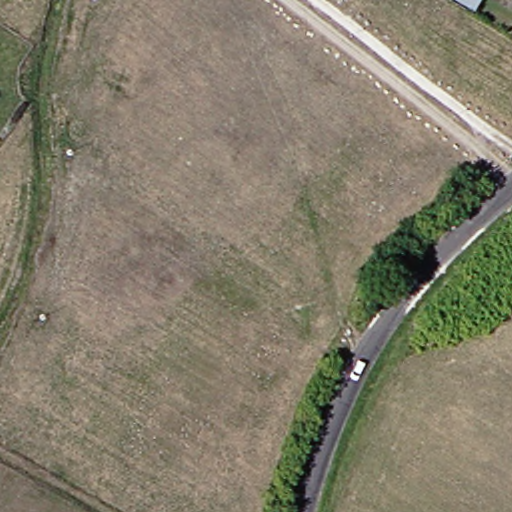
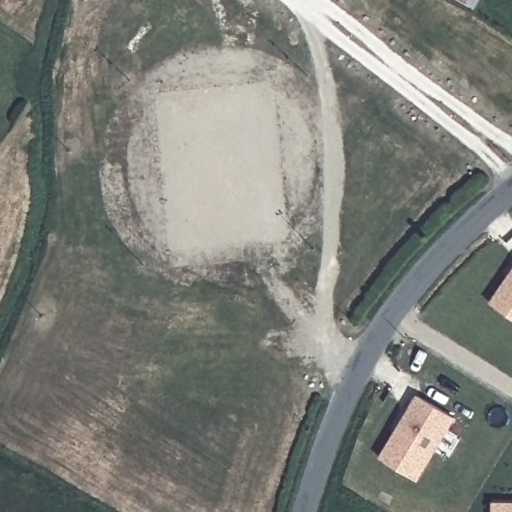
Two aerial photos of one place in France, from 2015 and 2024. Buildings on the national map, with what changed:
new [(457,0),(479,0),(474,9),(457,0)]
new [(512,274),(512,319),(491,304),(512,274)]
new [(419,396),(455,418),(417,481),(381,459),(419,396)]
new [(494,504),(512,504),(512,512),(494,512),(494,504)]

